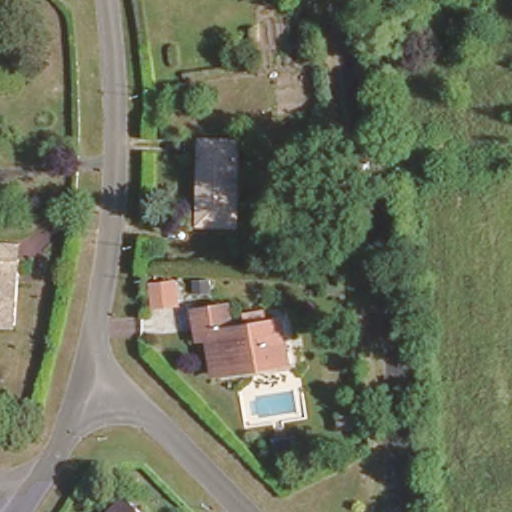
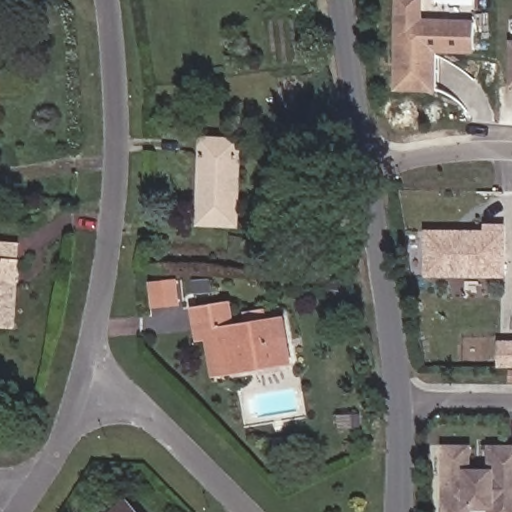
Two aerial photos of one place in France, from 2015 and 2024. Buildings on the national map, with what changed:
new [(475,55),(438,52),(437,92),(395,91),(397,0),(426,0),(424,17),(477,20),(475,55)]
new [(511,87),(512,63),(512,87),(511,87)]
unchanged [(238,132),(237,220),(197,220),(198,135),(238,132)]
new [(426,277),(426,230),(506,231),(505,278),(426,277)]
unchanged [(3,321),(0,321),(0,253),(11,255),(3,321)]
unchanged [(211,339),(201,339),(197,310),(232,302),(235,324),(285,315),(292,361),(267,367),(264,360),(217,367),(211,339)]
new [(512,341),(512,377),(510,377),(510,367),(497,367),(497,340),(512,341)]
new [(473,444),(473,467),(487,467),(488,445),(512,445),(512,512),(488,512),(488,510),(472,510),(472,512),(442,512),(442,444),(473,444)]
unchanged [(143,512),(96,512),(120,488),(143,512)]

